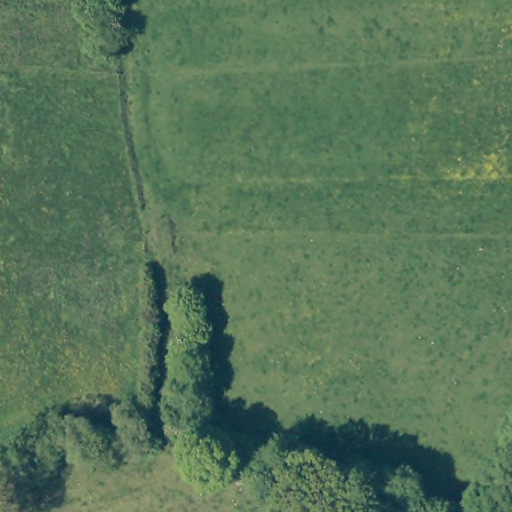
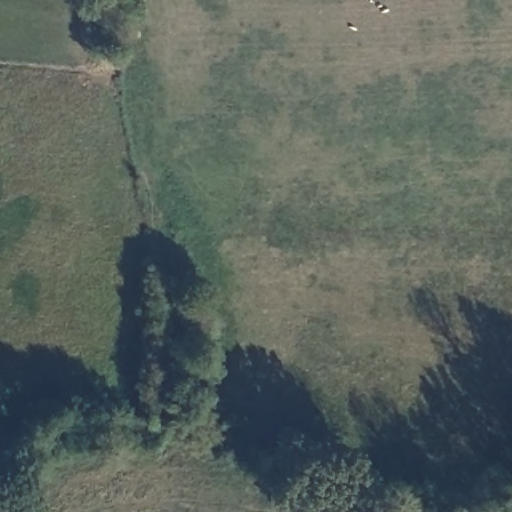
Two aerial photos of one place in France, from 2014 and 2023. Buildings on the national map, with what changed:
[]

